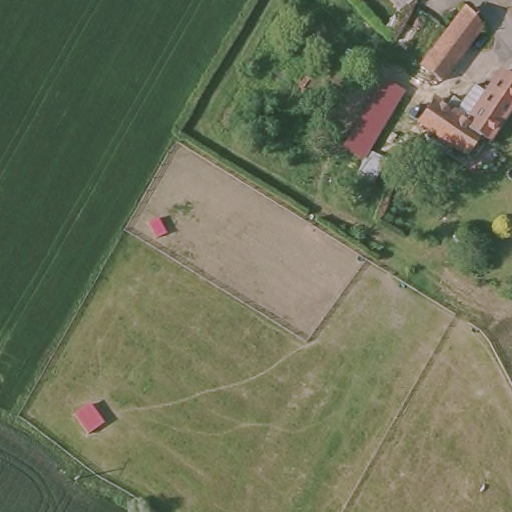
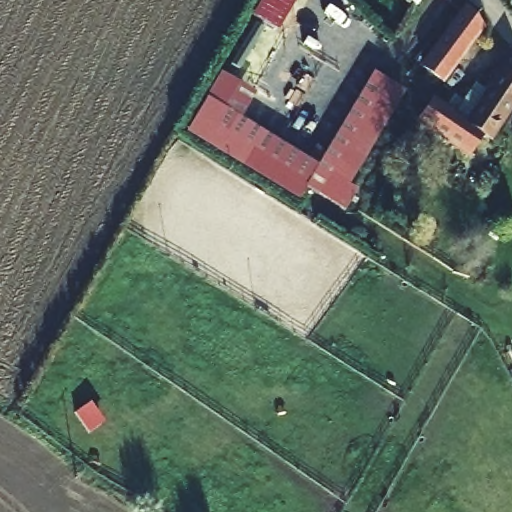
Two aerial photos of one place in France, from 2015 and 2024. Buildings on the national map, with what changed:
new [(278,32),(252,17),(262,0),(296,0),(278,32)]
unchanged [(420,4),(416,0),(422,0),(420,4)]
unchanged [(483,24),(444,77),(427,65),(468,7),(483,24)]
unchanged [(438,98),(457,110),(478,78),(491,87),(506,67),(512,71),(512,109),(491,138),(485,133),(470,151),(423,120),(438,98)]
demolished [(347,140),(359,121),(362,123),(393,68),(410,78),(378,133),(367,152),(347,140)]
new [(185,132),(221,72),(255,93),(241,117),(317,164),(373,71),(405,91),(350,185),(357,190),(345,210),(305,187),(297,200),(185,132)]

